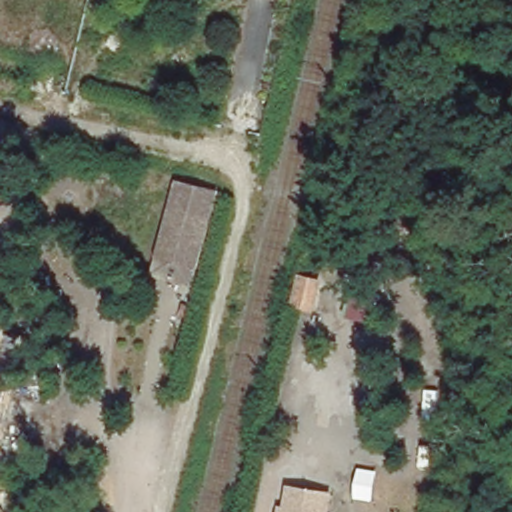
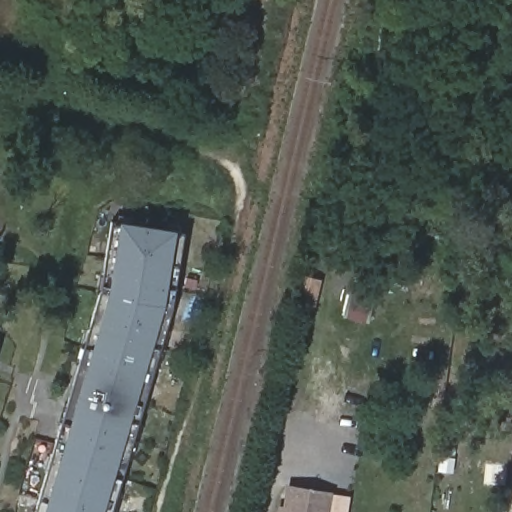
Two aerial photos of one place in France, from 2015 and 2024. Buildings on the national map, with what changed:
demolished [(220,187),(200,268),(157,258),(177,176),(220,187)]
new [(40,492),(102,292),(114,225),(120,226),(121,220),(178,230),(177,235),(184,236),(173,304),(111,512),(36,512),(40,492)]
demolished [(195,291),(151,280),(157,258),(200,268),(195,291)]
unchanged [(317,312),(290,307),(299,273),(325,278),(317,312)]
unchanged [(371,322),(345,317),(352,284),(376,289),(371,322)]
demolished [(361,424),(315,415),(322,382),(367,392),(361,424)]
unchanged [(280,505),(285,505),(290,485),(335,493),(331,512),(278,512),(280,505)]

